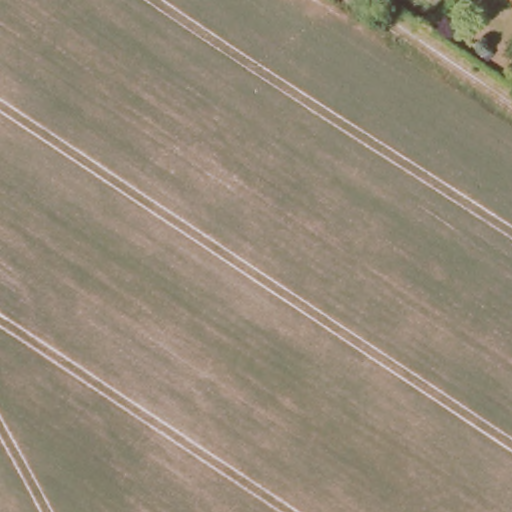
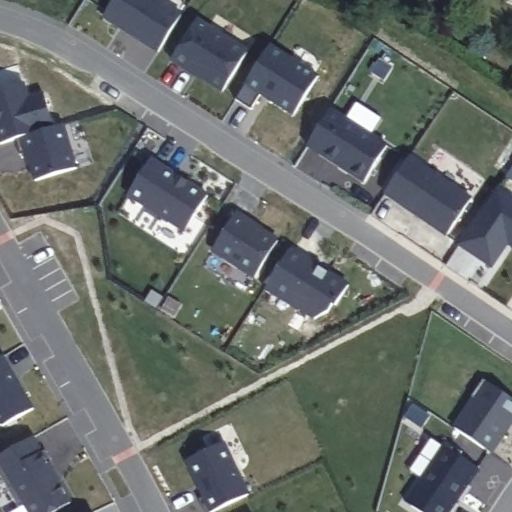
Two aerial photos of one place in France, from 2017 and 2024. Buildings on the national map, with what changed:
new [(160,52),(105,17),(116,0),(159,0),(183,16),(160,52)]
new [(249,52),(224,91),(190,69),(190,70),(173,60),(198,19),(249,52)]
new [(257,100),(251,109),(236,100),(271,45),(319,75),(292,117),(257,100)]
new [(43,94),(54,127),(18,139),(0,144),(0,91),(25,82),(30,98),(43,94)]
new [(331,109),(389,145),(366,182),(349,172),(351,169),(342,163),(341,166),(309,146),(331,109)]
new [(65,124),(79,167),(38,180),(30,152),(23,155),(18,139),(65,124)]
new [(412,156),(474,197),(449,234),(433,224),(434,222),(424,216),(424,218),(386,192),(412,156)]
new [(209,195),(186,231),(129,196),(152,159),(209,195)]
new [(512,240),(511,240),(493,266),(460,244),(499,187),(512,196),(512,240)]
new [(238,213),(263,230),(263,231),(279,242),(256,277),(214,251),(238,213)]
new [(291,249),(321,267),(321,268),(329,273),(329,272),(349,286),(337,306),(334,304),(329,312),(316,318),(300,308),(299,308),(267,288),(291,249)]
new [(4,356),(35,408),(5,425),(0,424),(0,358),(4,356)]
new [(473,397),(484,380),(512,399),(512,422),(492,453),(455,428),(474,399),(473,397)]
new [(34,437),(43,453),(47,450),(56,467),(52,469),(72,502),(56,512),(32,512),(28,504),(20,508),(0,473),(0,457),(34,437)]
new [(226,443),(250,495),(213,512),(207,512),(201,500),(206,497),(188,461),(226,443)]
new [(408,503),(445,447),(479,470),(451,512),(421,512),(408,503)]
new [(52,469),(56,467),(64,481),(60,482),(52,469)]

